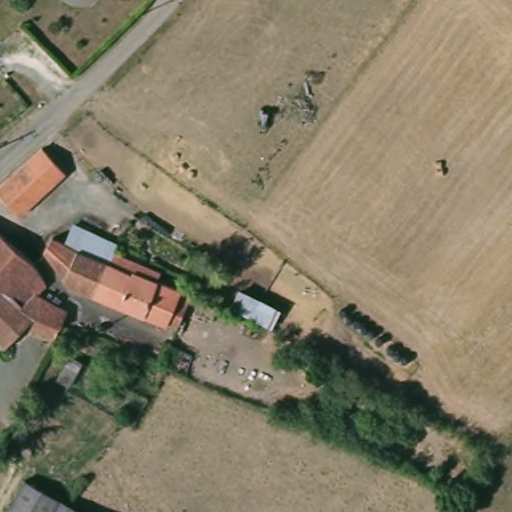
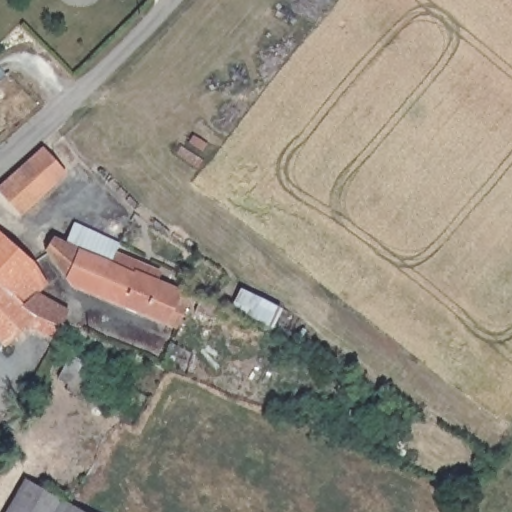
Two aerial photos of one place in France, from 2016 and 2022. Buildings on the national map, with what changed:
unchanged [(36,146),(59,171),(14,214),(0,199),(0,177),(36,146)]
unchanged [(44,245),(37,235),(43,226),(65,238),(74,219),(117,239),(109,258),(131,269),(133,264),(134,264),(160,278),(191,294),(174,328),(70,282),(44,245)]
unchanged [(46,337),(16,324),(0,337),(0,237),(27,263),(40,285),(31,294),(63,308),(56,324),(53,322),(46,337)]
unchanged [(70,502),(64,512),(20,512),(36,483),(70,502)]
unchanged [(70,502),(88,512),(64,512),(70,502)]

